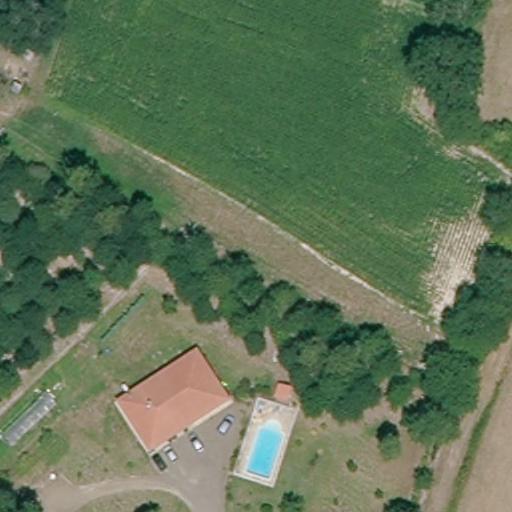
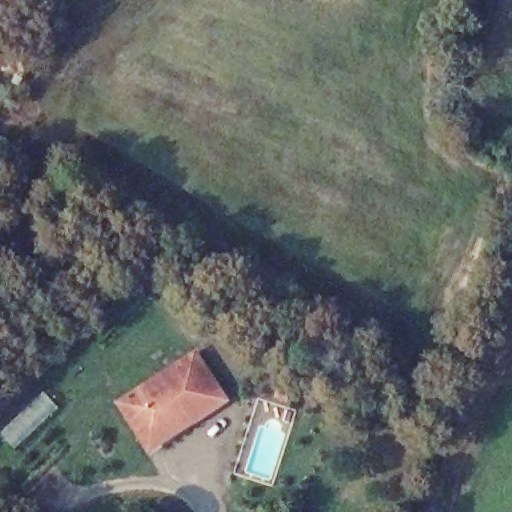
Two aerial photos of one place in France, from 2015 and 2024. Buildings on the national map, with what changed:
unchanged [(158,456),(150,443),(128,410),(206,359),(237,404),(200,428),(176,444),(158,456)]
unchanged [(296,403),(287,400),(290,390),(298,392),(296,403)]

